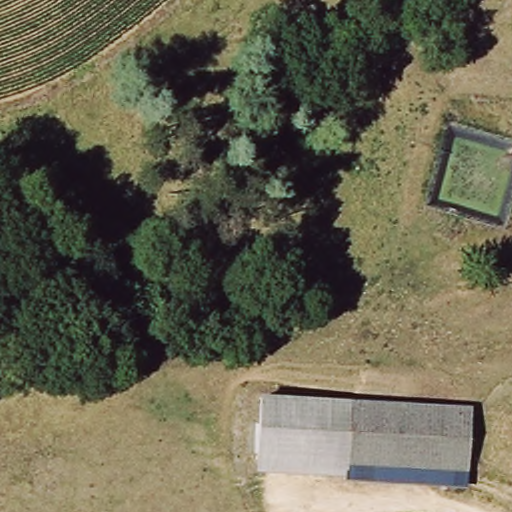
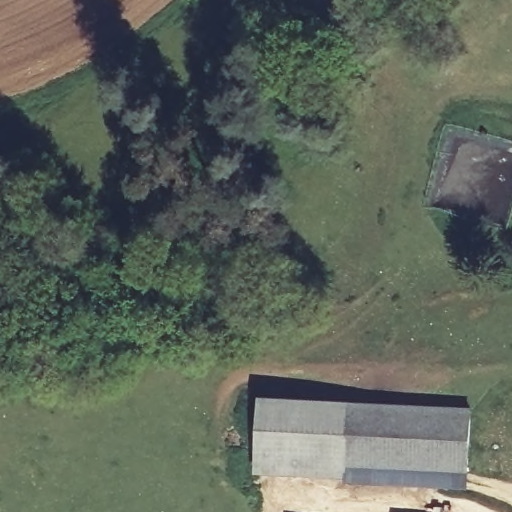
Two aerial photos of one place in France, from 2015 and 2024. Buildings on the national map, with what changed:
unchanged [(259,468),(259,407),(469,404),(471,464),(470,480),(350,481),(349,478),(259,479),(259,468)]

